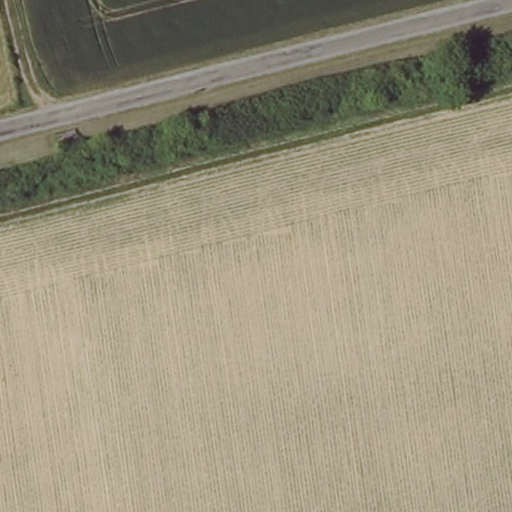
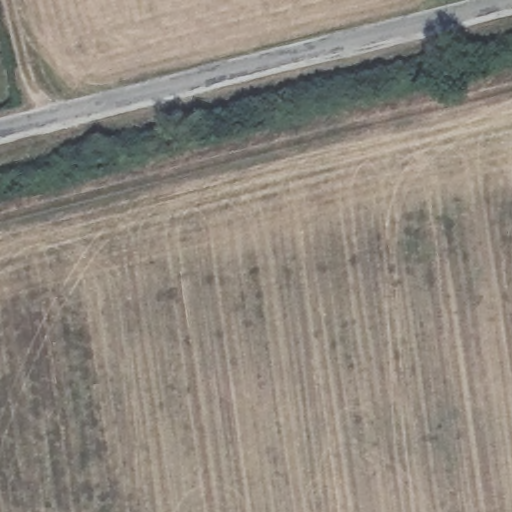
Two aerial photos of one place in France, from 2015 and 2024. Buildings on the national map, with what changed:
unchanged [(54,131),(75,126),(78,140),(57,145),(54,131)]

